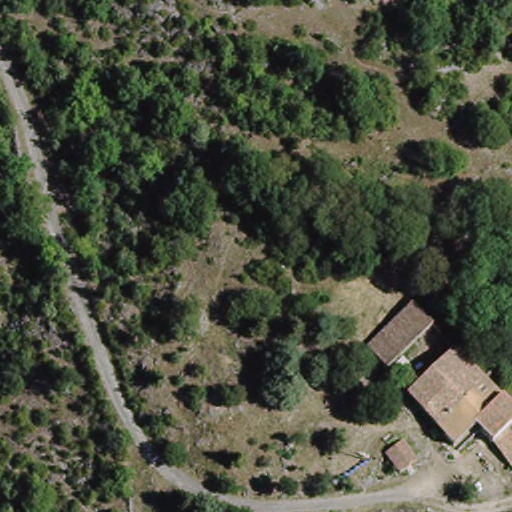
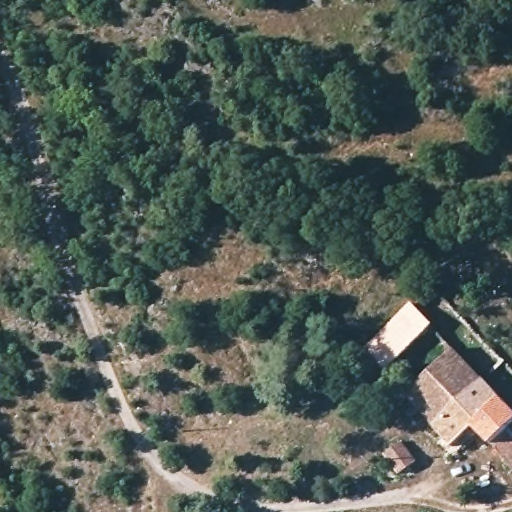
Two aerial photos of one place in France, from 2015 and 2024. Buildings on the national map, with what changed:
unchanged [(494,444),(492,445),(482,434),(477,428),(454,448),(363,354),(411,307),(512,413),(512,427),(494,444)]
unchanged [(494,444),(512,427),(512,467),(494,444)]
unchanged [(402,477),(387,458),(401,446),(417,465),(402,477)]

